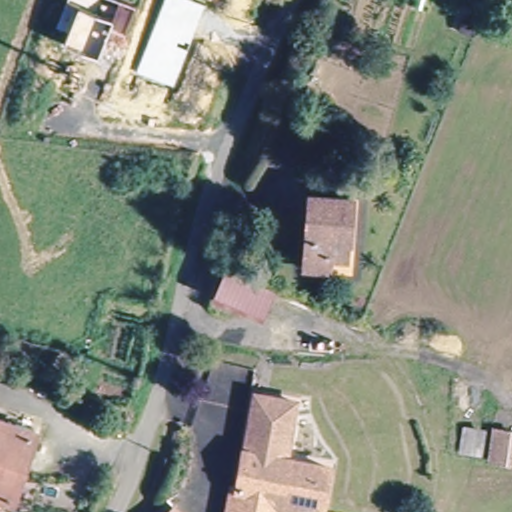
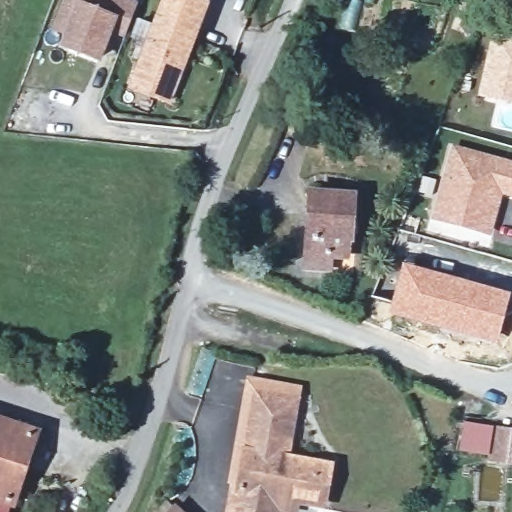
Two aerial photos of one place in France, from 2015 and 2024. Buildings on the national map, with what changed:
unchanged [(59,47),(69,19),(57,14),(63,0),(132,0),(137,2),(123,38),(115,35),(112,44),(107,42),(99,63),(59,47)]
unchanged [(161,0),(204,0),(209,2),(171,106),(127,88),(161,0)]
new [(512,106),(478,99),(495,26),(512,30),(512,106)]
new [(512,198),(501,196),(491,237),(431,221),(451,143),(512,161),(512,198)]
unchanged [(330,260),(329,270),(305,268),(308,195),(342,196),(352,196),(348,239),(341,240),(340,258),(330,260)]
new [(402,263),(511,293),(497,344),(387,313),(402,263)]
unchanged [(257,512),(216,512),(221,479),(229,480),(247,389),(288,397),(276,453),(317,462),(310,498),(281,493),(278,507),(259,503),(257,512)]
new [(512,428),(512,456),(511,462),(457,449),(462,420),(512,428)]
unchanged [(36,435),(12,505),(0,502),(0,423),(36,435)]
unchanged [(171,512),(175,507),(179,512),(171,512)]

